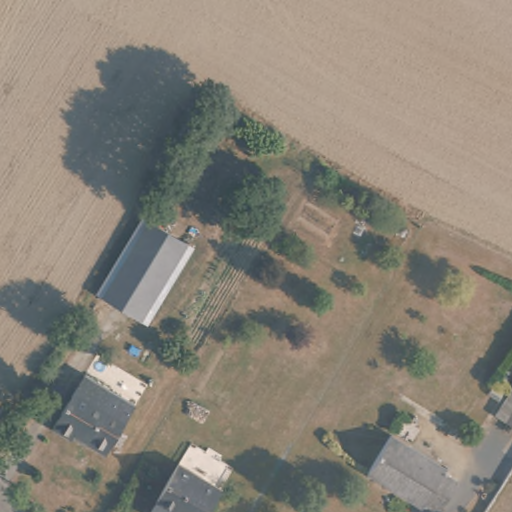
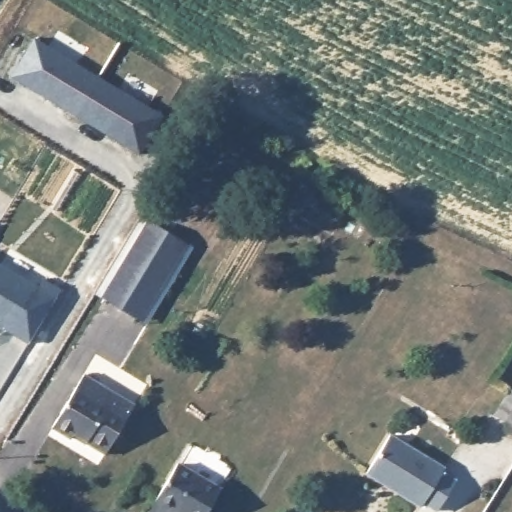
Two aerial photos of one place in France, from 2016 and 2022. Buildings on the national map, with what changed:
new [(35,36),(161,112),(136,153),(11,78),(35,36)]
unchanged [(145,221),(187,245),(142,323),(103,297),(145,221)]
new [(44,277),(63,288),(29,345),(0,327),(0,262),(39,285),(44,277)]
unchanged [(75,429),(71,435),(54,425),(86,372),(136,402),(109,449),(75,429)]
unchanged [(503,392),(509,380),(512,383),(512,399),(503,392)]
unchanged [(512,411),(512,419),(509,417),(512,411)]
unchanged [(427,498),(423,502),(371,472),(394,432),(448,464),(445,470),(459,478),(442,507),(427,498)]
unchanged [(177,464),(220,488),(207,512),(180,512),(156,500),(177,464)]

